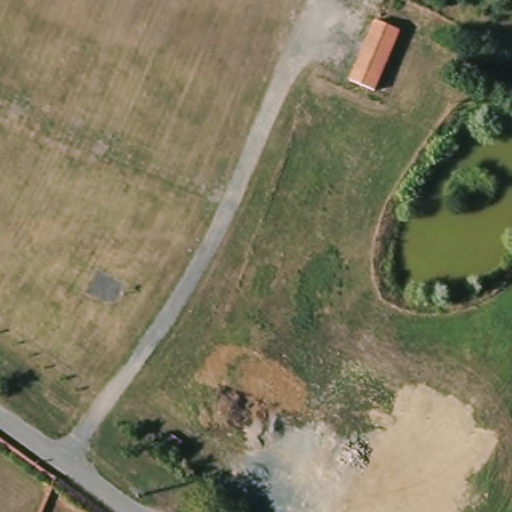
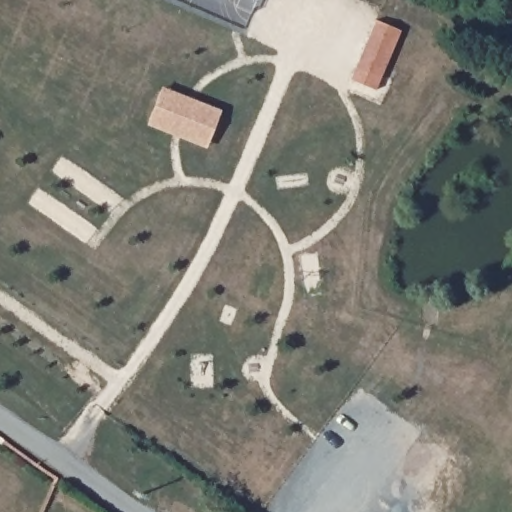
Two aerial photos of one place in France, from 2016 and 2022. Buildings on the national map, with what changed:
unchanged [(353,82),(377,23),(403,31),(377,93),(353,82)]
new [(208,149),(147,125),(162,86),(222,111),(208,149)]
unchanged [(462,116),(460,110),(470,106),(472,113),(462,116)]

